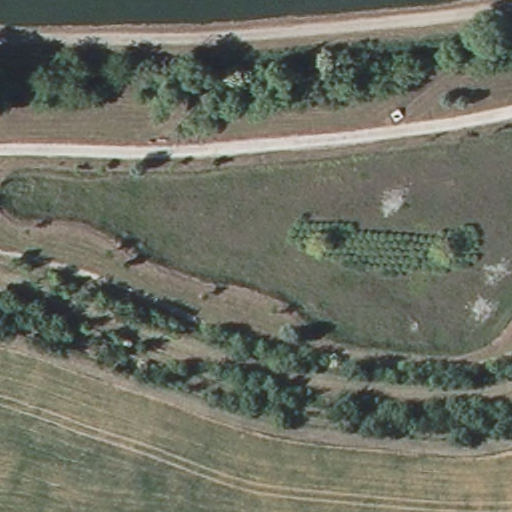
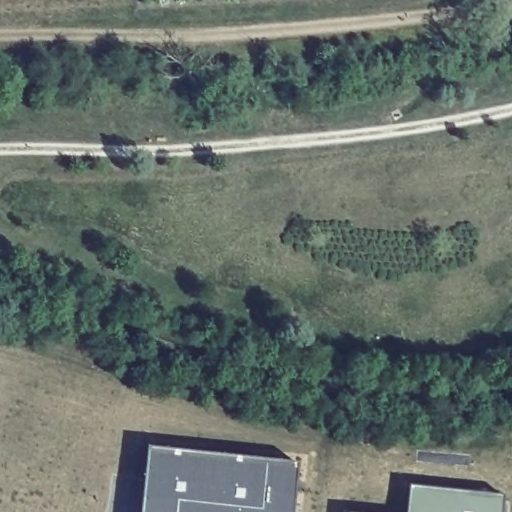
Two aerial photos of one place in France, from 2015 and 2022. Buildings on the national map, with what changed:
new [(299,462),(294,512),(145,512),(152,447),(299,462)]
new [(502,496),(500,512),(406,512),(409,487),(502,496)]

